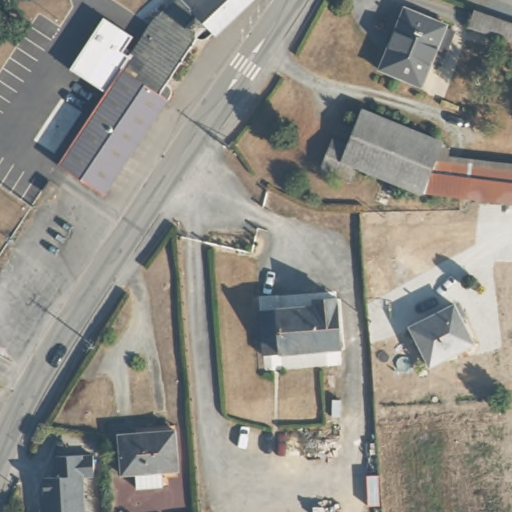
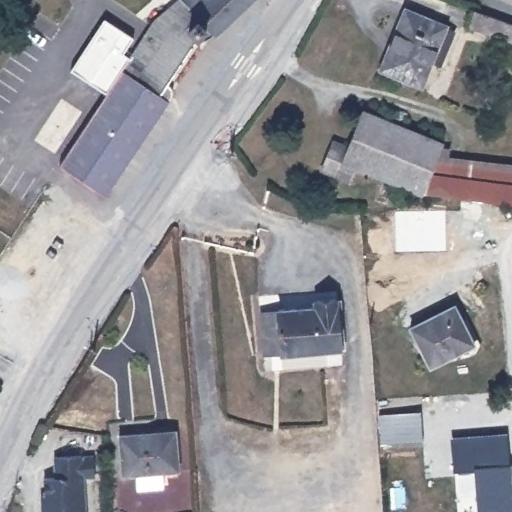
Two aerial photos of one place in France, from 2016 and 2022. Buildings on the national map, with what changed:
unchanged [(124,63),(160,10),(172,0),(198,0),(220,24),(208,25),(175,72),(178,76),(177,86),(124,162),(79,131),(124,63)]
unchanged [(198,0),(246,0),(220,24),(198,0)]
unchanged [(385,64),(404,5),(450,21),(449,22),(458,24),(445,61),(437,57),(430,79),(385,64)]
unchanged [(512,24),(512,39),(468,25),(472,11),(512,24)]
unchanged [(442,138),(439,145),(425,185),(378,170),(356,163),(352,175),(325,166),(332,142),(345,146),(359,109),(442,138)]
unchanged [(102,194),(56,164),(79,131),(124,162),(102,194)]
unchanged [(378,170),(425,185),(439,145),(512,157),(512,203),(503,203),(502,214),(479,210),(481,198),(421,196),(395,188),(391,206),(371,198),(378,170)]
unchanged [(45,202),(36,196),(42,187),(51,193),(45,202)]
unchanged [(321,348),(317,303),(320,303),(320,295),(343,294),(346,346),(321,348)]
unchanged [(267,352),(264,308),(317,303),(321,348),(267,352)]
unchanged [(409,327),(453,304),(472,343),(428,365),(409,327)]
new [(420,410),(423,442),(382,445),(379,414),(420,410)]
unchanged [(163,485),(136,487),(135,472),(121,473),(118,432),(168,430),(179,430),(181,469),(170,470),(163,470),(163,485)]
new [(510,464),(512,484),(512,512),(478,512),(474,469),(454,471),(451,436),(507,432),(510,464)]
unchanged [(41,497),(40,472),(50,472),(49,452),(77,450),(77,452),(92,451),(91,470),(80,470),(81,512),(39,512),(38,498),(41,497)]

